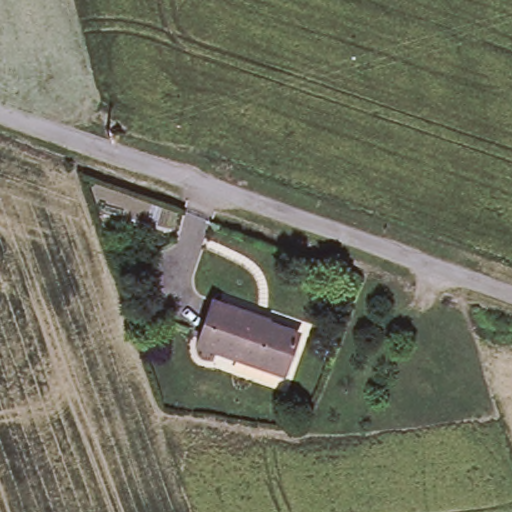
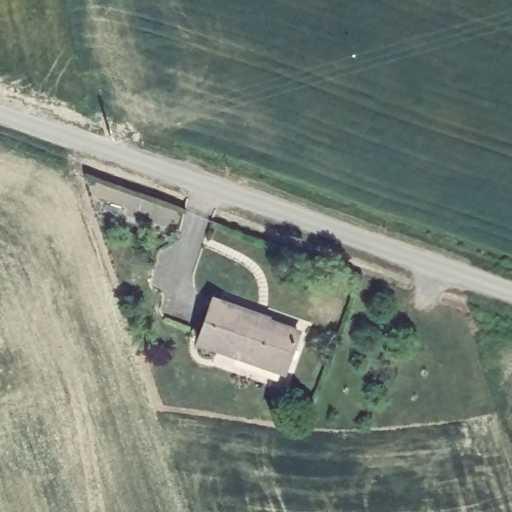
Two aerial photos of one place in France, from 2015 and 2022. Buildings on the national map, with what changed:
unchanged [(253,316),(252,319),(300,335),(285,374),(200,344),(214,302),(253,316)]

